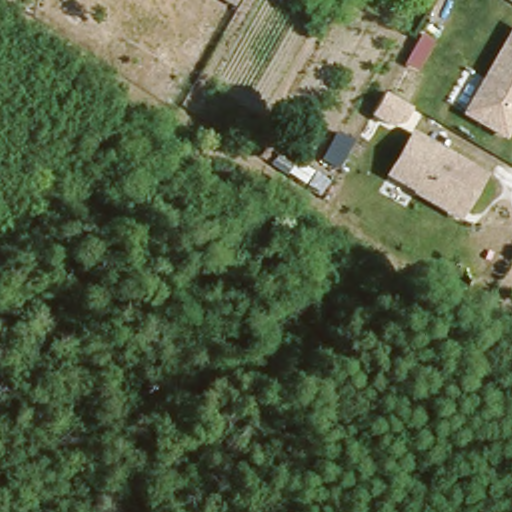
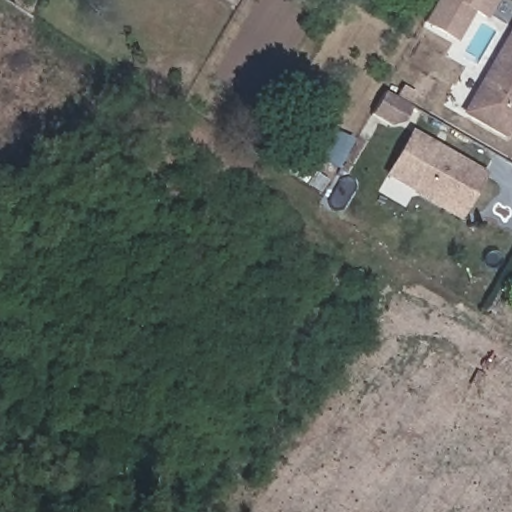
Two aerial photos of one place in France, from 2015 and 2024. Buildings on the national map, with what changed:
new [(456,44),(422,24),(437,0),(498,0),(486,21),(473,14),(456,44)]
unchanged [(510,22),(512,23),(512,124),(503,139),(460,115),(510,22)]
unchanged [(397,132),(370,117),(384,91),(412,107),(397,132)]
unchanged [(410,128),(487,173),(461,220),(383,175),(410,128)]

